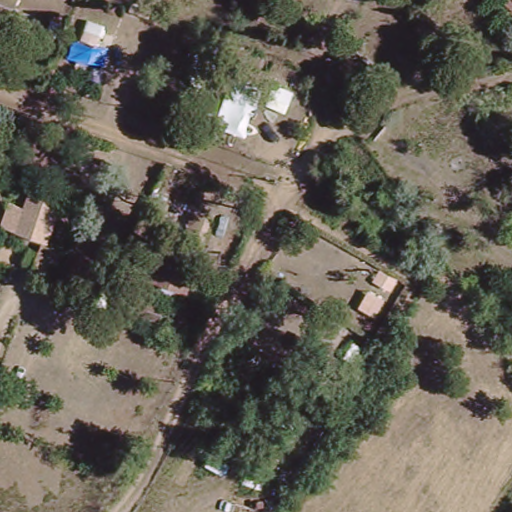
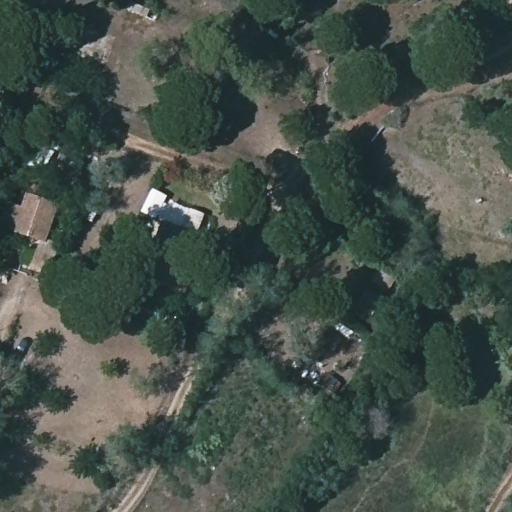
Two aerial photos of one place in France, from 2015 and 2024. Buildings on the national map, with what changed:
unchanged [(505,0),(512,0),(512,7),(505,0)]
unchanged [(59,201),(65,203),(54,236),(10,220),(17,196),(28,200),(35,178),(62,190),(59,201)]
unchanged [(186,251),(159,241),(164,228),(191,238),(186,251)]
unchanged [(150,257),(156,258),(159,249),(197,263),(187,288),(145,272),(150,257)]

